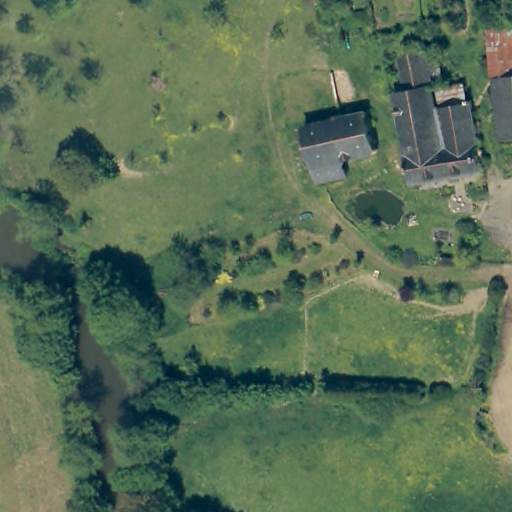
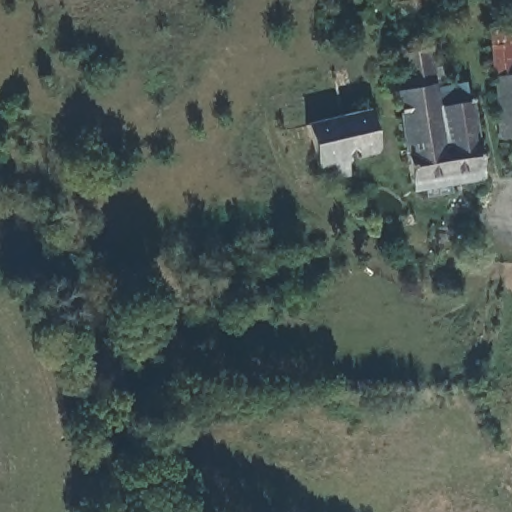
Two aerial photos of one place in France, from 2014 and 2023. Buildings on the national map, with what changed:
unchanged [(486,72),(482,22),(512,21),(512,71),(486,72)]
unchanged [(409,180),(392,85),(402,83),(397,49),(434,42),(441,81),(461,77),(463,93),(469,92),(481,168),(409,180)]
unchanged [(491,132),(486,72),(512,71),(512,131),(491,132)]
unchanged [(340,113),(365,107),(374,149),(341,156),(343,173),(317,180),(303,122),(340,113)]

